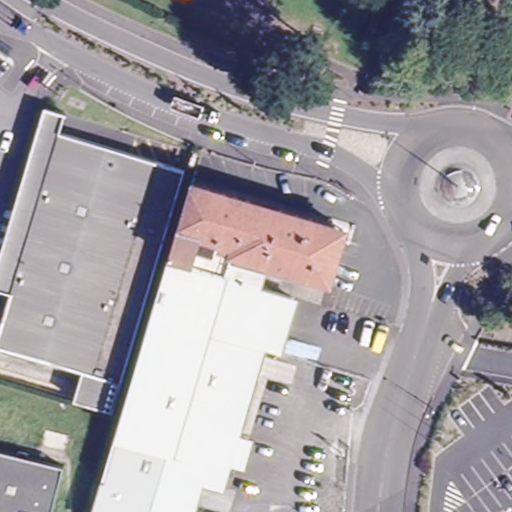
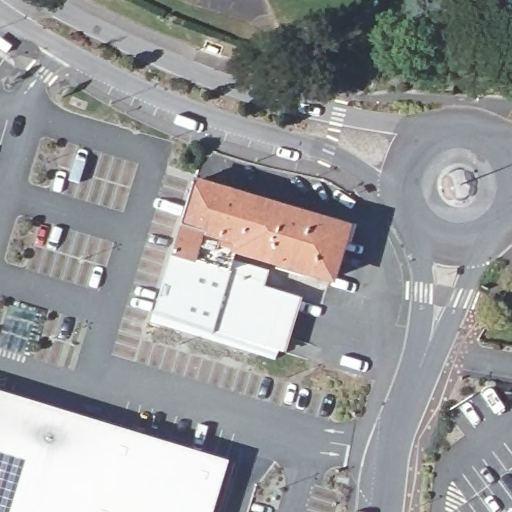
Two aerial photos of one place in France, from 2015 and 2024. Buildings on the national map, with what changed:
demolished [(40,187),(54,135),(120,153),(104,208),(40,187)]
demolished [(120,153),(181,170),(139,323),(123,319),(150,223),(104,208),(120,153)]
unchanged [(339,225),(325,273),(233,247),(230,257),(172,238),(188,181),(339,225)]
demolished [(104,208),(150,223),(123,319),(12,286),(40,187),(104,208)]
unchanged [(230,257),(263,266),(259,280),(292,289),(275,346),(258,340),(153,308),(172,238),(230,257)]
demolished [(87,374),(0,350),(0,332),(12,286),(123,319),(100,400),(81,394),(87,374)]
demolished [(258,340),(218,474),(172,461),(114,444),(124,407),(153,308),(258,340)]
demolished [(139,323),(116,405),(100,400),(123,319),(139,323)]
new [(228,462),(213,512),(0,512),(0,392),(228,462)]
demolished [(475,490),(435,475),(457,406),(501,424),(475,490)]
demolished [(114,444),(172,461),(157,512),(98,494),(114,444)]
demolished [(25,461),(64,472),(56,501),(54,512),(0,512),(0,454),(25,461)]
demolished [(216,483),(196,477),(186,512),(159,512),(157,512),(172,461),(218,474),(216,483)]
demolished [(98,494),(157,512),(92,512),(98,494)]

